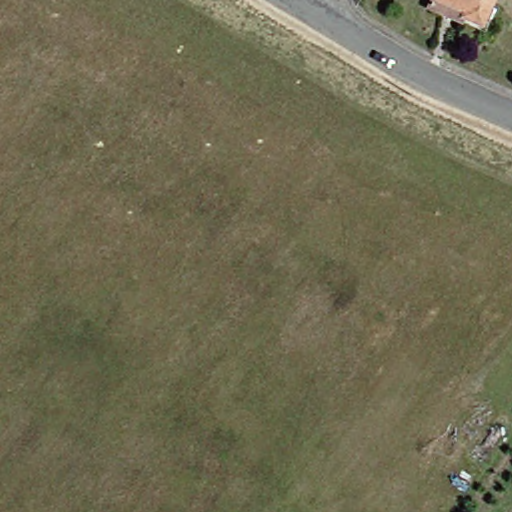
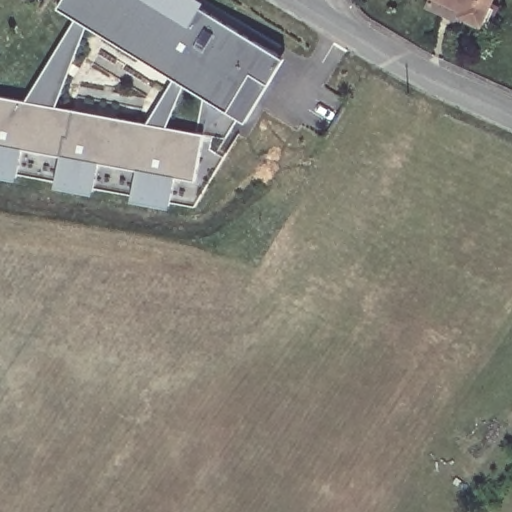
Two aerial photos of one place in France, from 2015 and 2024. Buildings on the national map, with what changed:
new [(61,0),(157,0),(186,18),(194,5),(250,38),(284,59),(246,122),(237,118),(196,180),(176,178),(169,207),(132,200),(132,194),(95,187),(94,194),(55,188),(56,181),(18,174),(18,180),(0,176),(0,96),(26,100),(75,20),(56,7),(61,0)]
unchanged [(482,0),(470,23),(461,18),(428,0),(482,0)]

